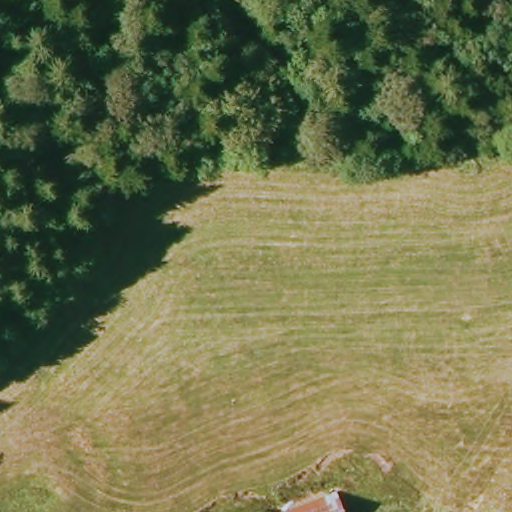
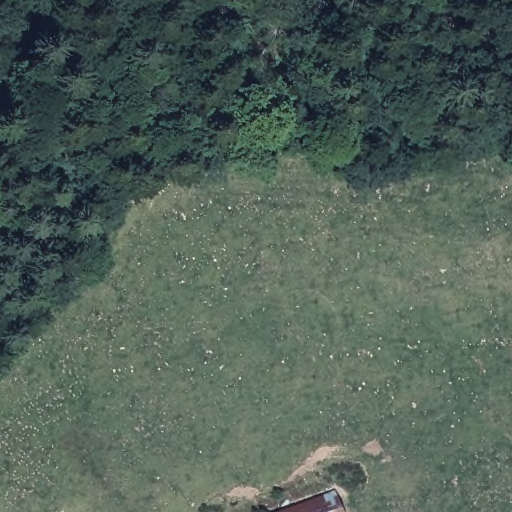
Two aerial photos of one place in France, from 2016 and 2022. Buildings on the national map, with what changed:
unchanged [(338,512),(270,512),(331,493),(338,512)]

